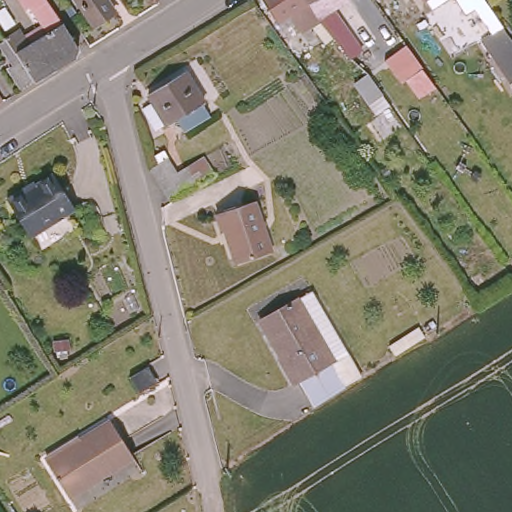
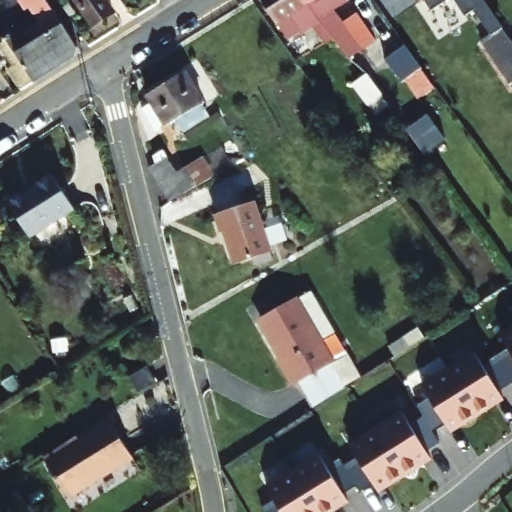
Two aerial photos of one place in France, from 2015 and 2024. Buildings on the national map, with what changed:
unchanged [(19,57),(4,36),(19,27),(24,33),(41,22),(28,2),(24,6),(21,0),(48,0),(53,7),(79,44),(76,53),(35,80),(23,87),(7,67),(19,57)]
unchanged [(95,23),(80,0),(109,0),(115,10),(95,23)]
unchanged [(324,40),(308,21),(301,26),(291,12),(278,21),(265,0),(309,0),(335,31),(324,40)]
unchanged [(330,0),(351,26),(364,44),(355,52),(354,52),(335,31),(309,0),(330,0)]
unchanged [(428,0),(444,0),(433,7),(428,0)]
unchanged [(512,35),(512,80),(511,81),(482,39),(493,32),(474,6),(466,11),(458,0),(488,0),(496,11),(512,35)]
unchanged [(412,49),(430,74),(409,90),(384,57),(407,41),(412,49)]
unchanged [(152,106),(163,100),(158,92),(194,69),(214,101),(176,123),(175,122),(164,128),(152,106)]
unchanged [(0,104),(0,96),(4,102),(0,104)]
unchanged [(176,170),(185,165),(196,184),(169,200),(149,165),(166,155),(176,170)]
unchanged [(74,205),(29,233),(7,197),(24,186),(28,190),(53,172),(74,205)]
unchanged [(268,226),(274,227),(271,237),(276,252),(241,263),(231,227),(226,229),(221,212),(259,199),(268,226)]
unchanged [(276,362),(284,357),(259,316),(294,296),(310,286),(362,375),(359,377),(314,407),(296,377),(288,382),(276,362)]
new [(504,338),(512,333),(512,353),(504,338)]
new [(424,386),(476,353),(504,397),(452,432),(424,386)]
unchanged [(156,380),(137,390),(128,372),(146,362),(156,380)]
new [(351,446),(405,414),(431,457),(379,490),(351,446)]
unchanged [(135,453),(71,496),(48,458),(110,417),(135,453)]
new [(348,498),(327,512),(283,512),(268,488),(319,456),(348,498)]

